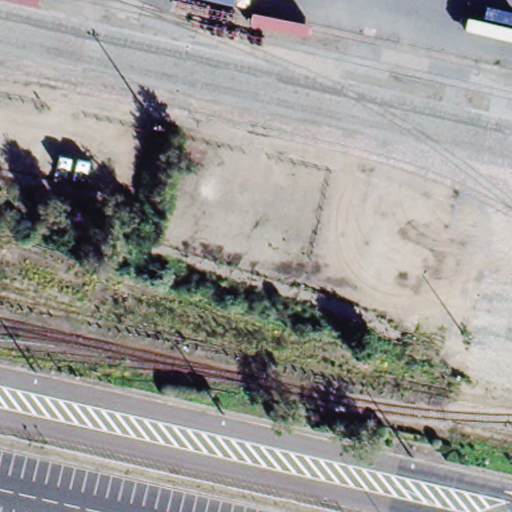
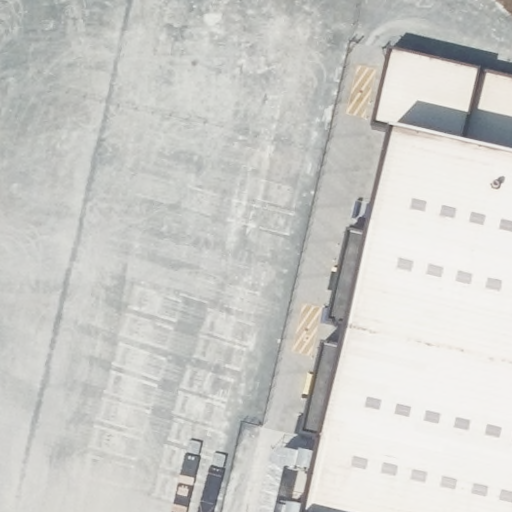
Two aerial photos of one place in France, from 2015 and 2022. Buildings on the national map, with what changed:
new [(288,512),(369,138),(512,169),(512,512),(288,512)]

